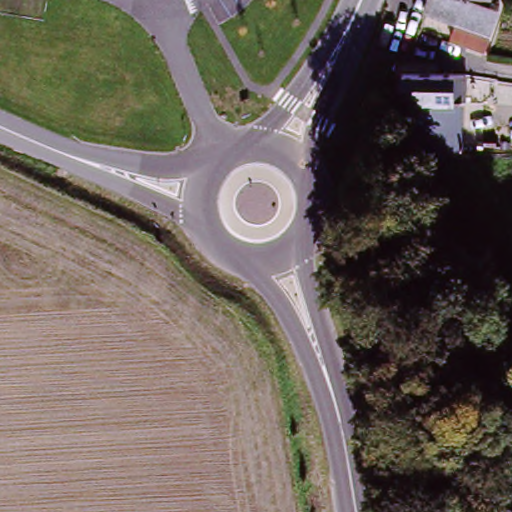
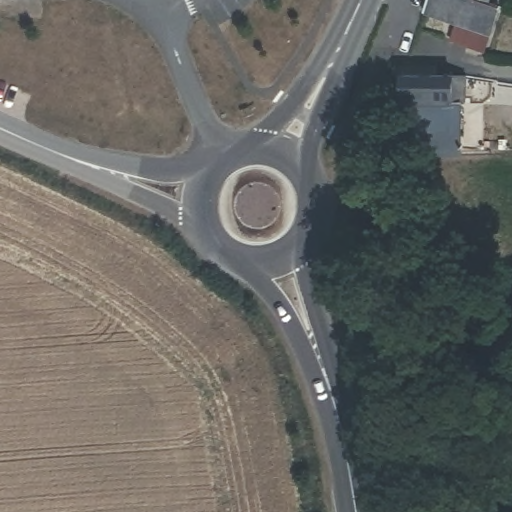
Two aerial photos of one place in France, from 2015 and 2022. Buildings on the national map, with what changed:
unchanged [(428,0),(456,0),(446,30),(433,25),(420,21),(428,0)]
unchanged [(492,7),(476,48),(430,34),(433,25),(446,30),(456,0),(484,0),(483,2),(492,7)]
unchanged [(417,81),(443,77),(459,77),(461,100),(402,108),(397,109),(395,85),(417,81)]
unchanged [(404,130),(402,108),(461,100),(465,131),(466,147),(437,151),(421,140),(416,137),(404,130)]

